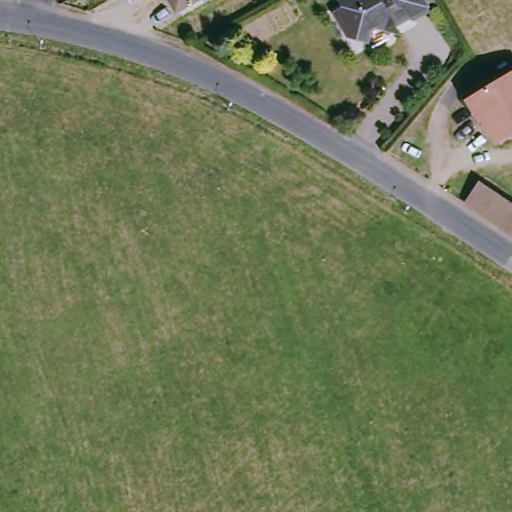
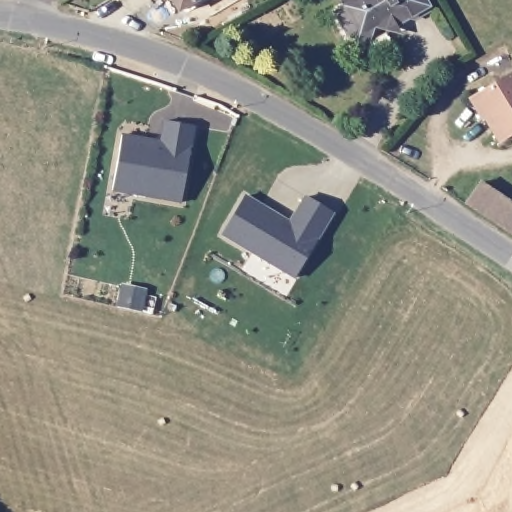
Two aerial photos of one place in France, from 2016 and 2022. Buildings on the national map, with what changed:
unchanged [(173,0),(195,0),(179,10),(173,0)]
unchanged [(392,34),(372,25),(367,41),(351,38),(337,14),(349,7),(345,0),(426,0),(433,11),(397,31),(392,34)]
unchanged [(512,127),(488,134),(482,113),(474,113),(469,91),(512,78),(512,127)]
new [(121,136),(146,140),(145,145),(159,147),(164,121),(193,126),(181,203),(132,195),(111,191),(114,176),(121,136)]
unchanged [(512,237),(468,209),(480,189),(512,209),(512,237)]
new [(244,197),(283,219),(281,222),(288,226),(305,197),(333,214),(294,279),(221,236),(244,197)]

